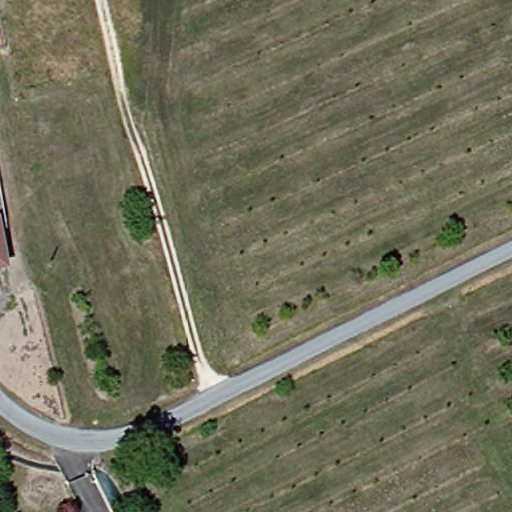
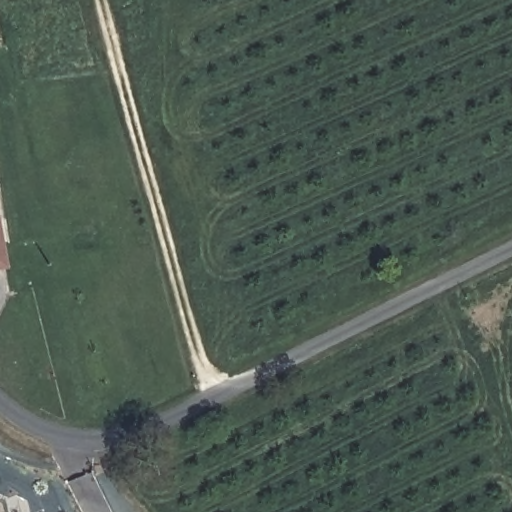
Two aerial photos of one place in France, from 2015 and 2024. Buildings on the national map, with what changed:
unchanged [(0,268),(0,241),(5,267),(0,268)]

